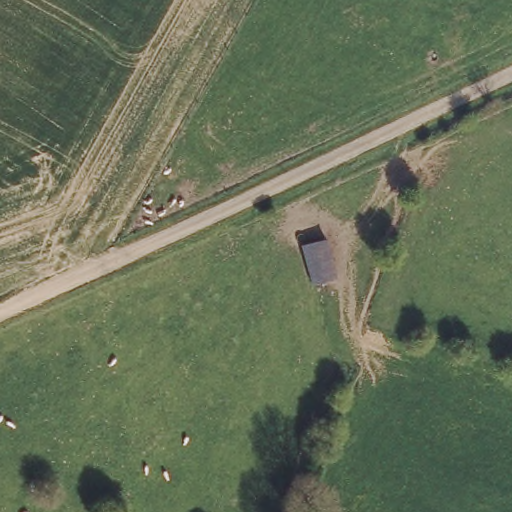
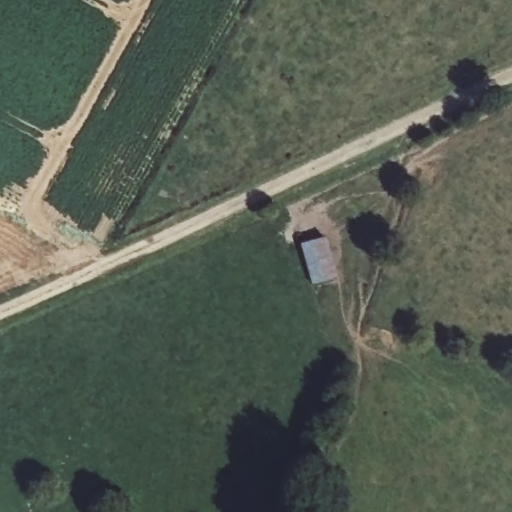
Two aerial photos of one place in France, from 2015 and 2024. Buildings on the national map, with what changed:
unchanged [(295,242),(325,236),(335,277),(308,284),(295,242)]

